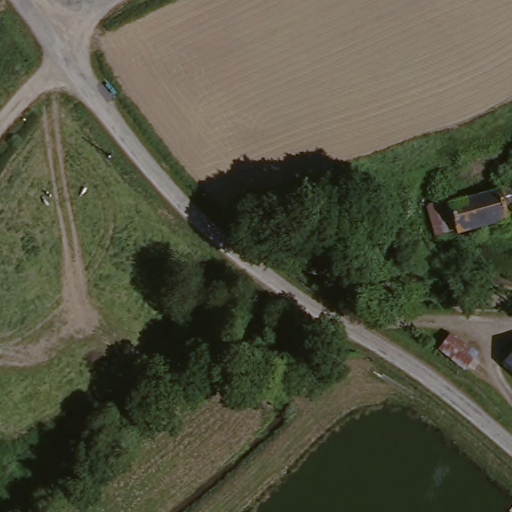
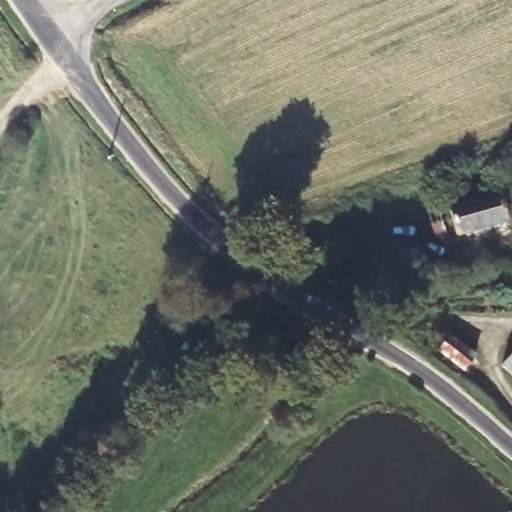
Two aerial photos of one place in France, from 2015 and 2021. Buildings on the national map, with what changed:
unchanged [(507,178),(512,177),(512,216),(499,219),(502,226),(455,238),(446,211),(492,197),(490,192),(508,186),(507,178)]
unchanged [(473,359),(463,372),(438,353),(448,341),(473,359)]
unchanged [(503,372),(512,363),(512,380),(503,372)]

